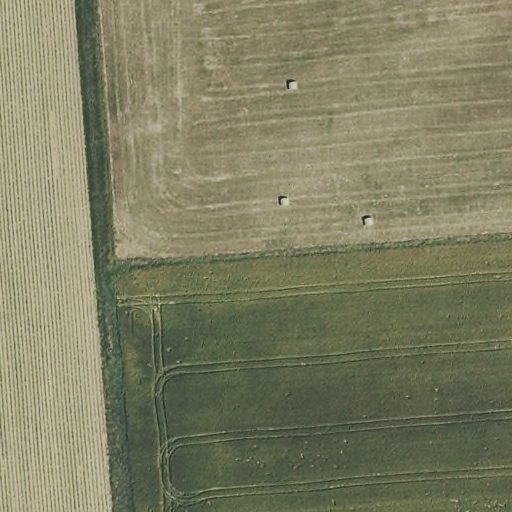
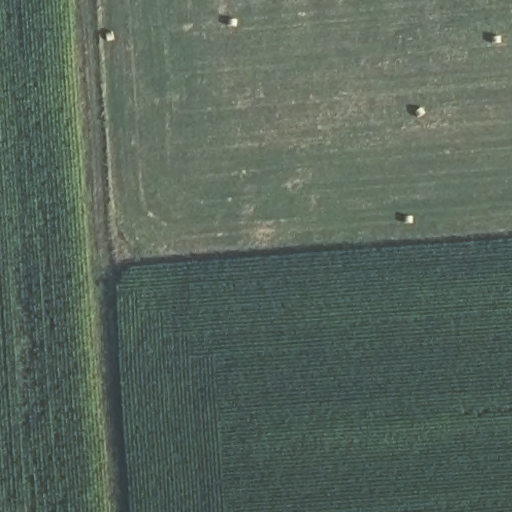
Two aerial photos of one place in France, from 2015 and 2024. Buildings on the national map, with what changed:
[]

